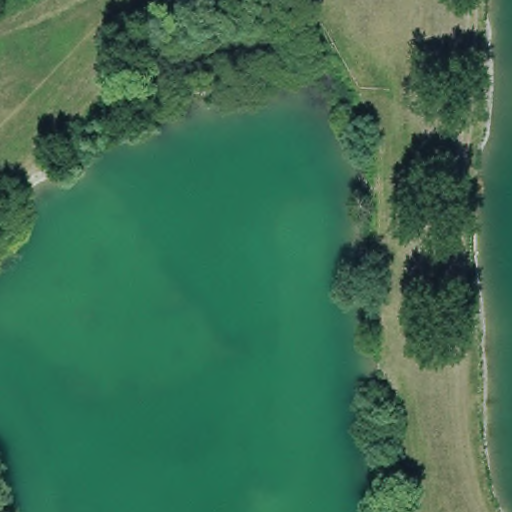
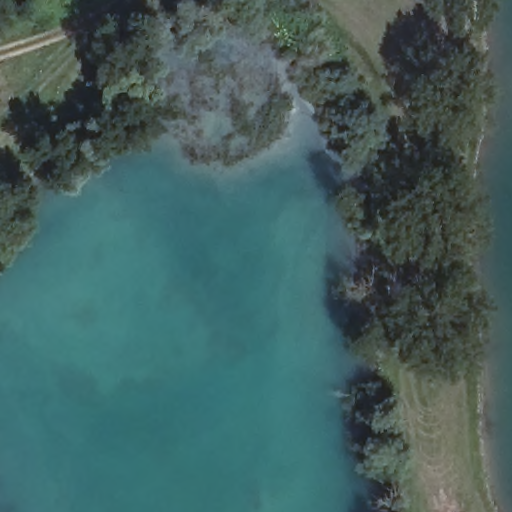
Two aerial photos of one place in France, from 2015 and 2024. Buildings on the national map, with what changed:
[]

